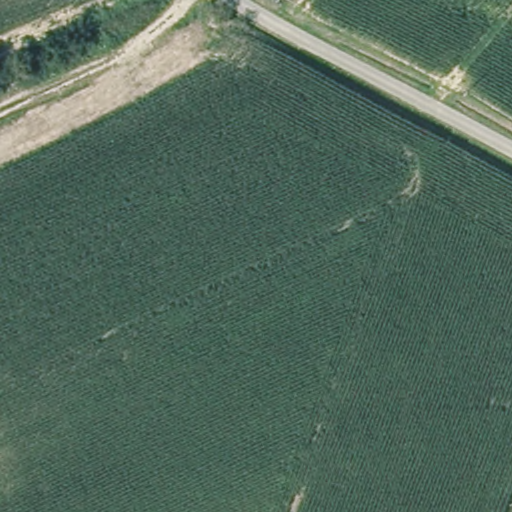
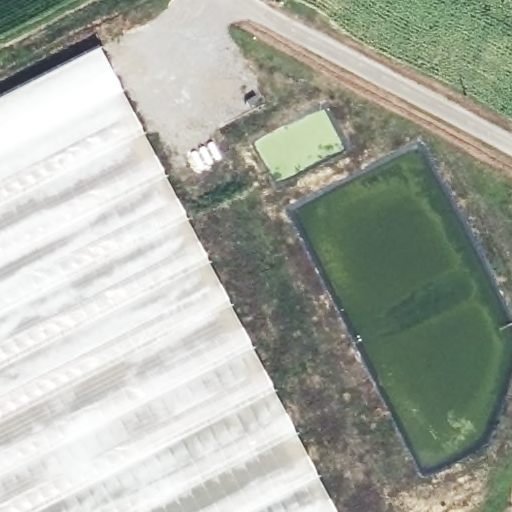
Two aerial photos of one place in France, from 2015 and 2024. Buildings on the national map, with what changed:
new [(0,97),(99,47),(334,512),(0,512),(0,97)]

